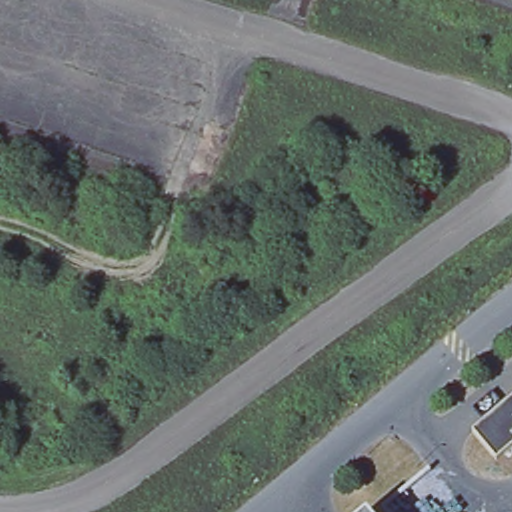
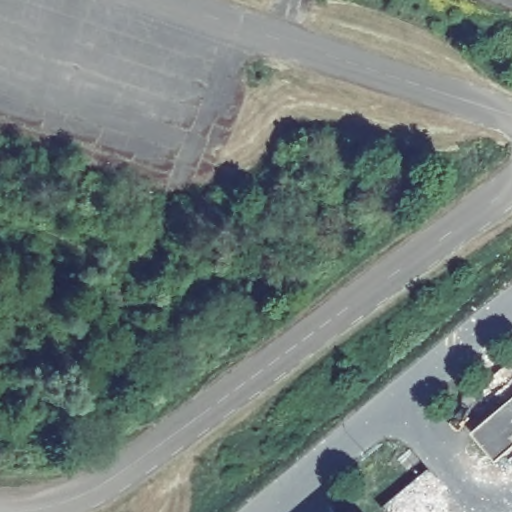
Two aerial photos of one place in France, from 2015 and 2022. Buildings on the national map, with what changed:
unchanged [(493,466),(469,437),(512,401),(512,450),(493,466)]

